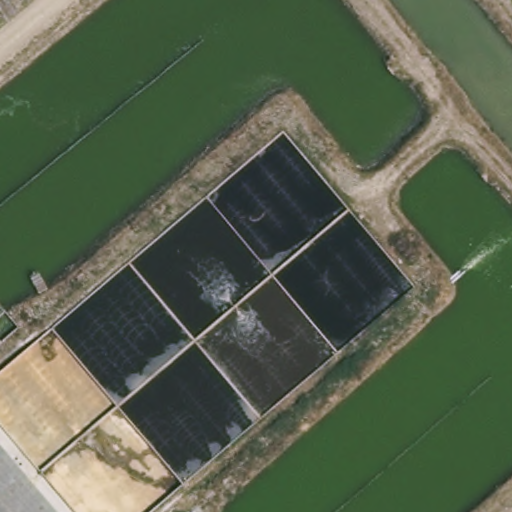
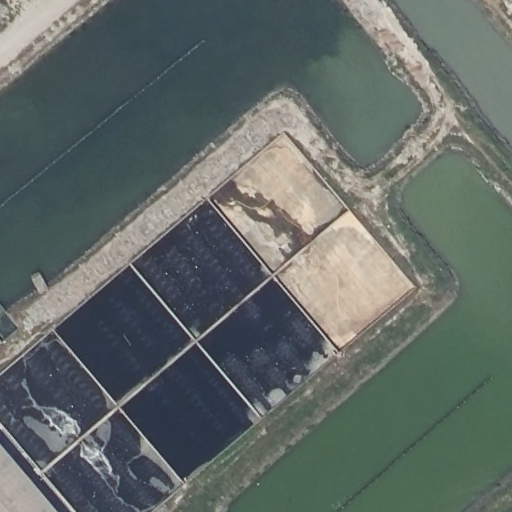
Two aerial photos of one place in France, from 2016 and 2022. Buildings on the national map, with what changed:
unchanged [(0,512),(0,446),(55,512),(0,512)]

